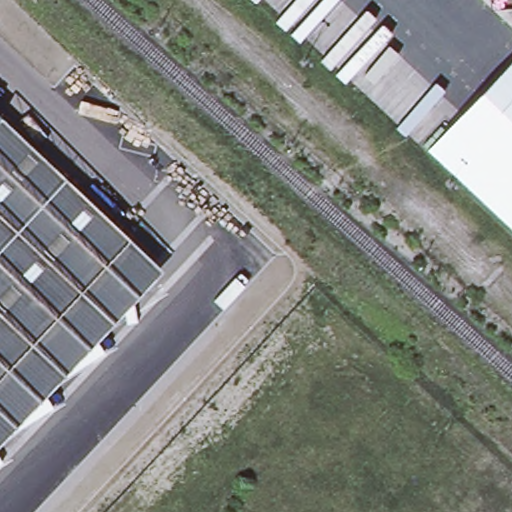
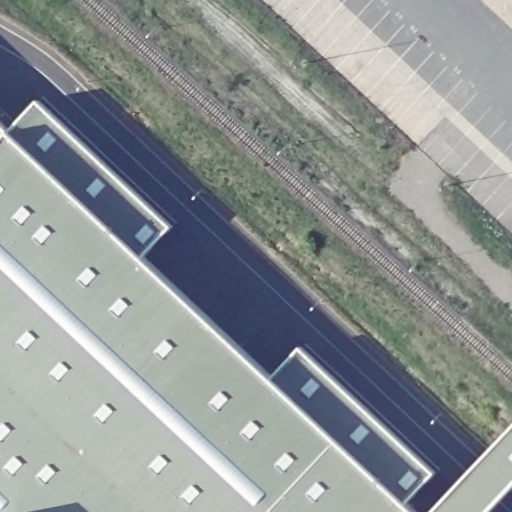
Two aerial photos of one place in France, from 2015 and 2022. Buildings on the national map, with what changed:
unchanged [(0,377),(0,122),(128,240),(0,377)]
new [(266,384),(303,357),(437,477),(410,509),(413,512),(0,512),(0,377),(128,240),(266,384)]

